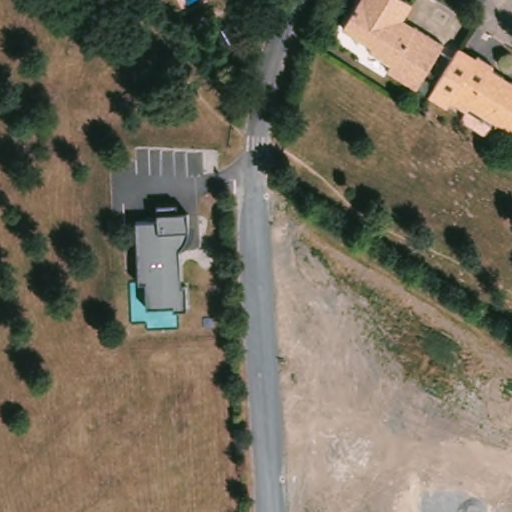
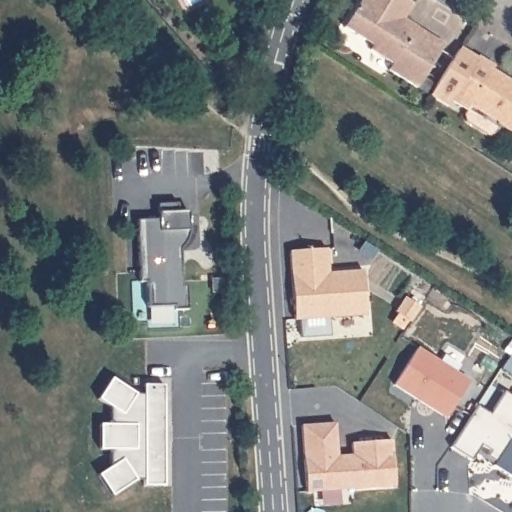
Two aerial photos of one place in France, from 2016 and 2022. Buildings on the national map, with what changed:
unchanged [(410,3),(402,18),(441,44),(413,89),(383,70),(387,64),(367,51),(371,46),(341,26),(358,0),(405,0),(410,3)]
unchanged [(487,71),(512,87),(512,137),(495,126),(490,135),(483,136),(461,122),(460,115),(462,112),(446,101),(474,57),(489,67),(487,71)]
unchanged [(146,283),(139,283),(137,219),(156,219),(156,204),(176,203),(176,211),(187,210),(189,222),(189,232),(186,241),(180,249),(181,284),(186,284),(186,308),(175,309),(175,306),(146,306),(146,283)]
new [(325,244),(326,269),(361,267),(364,312),(298,316),(292,316),(288,246),(325,244)]
new [(416,346),(468,380),(444,416),(392,382),(416,346)]
new [(112,445),(108,445),(102,445),(102,420),(107,420),(112,420),(112,402),(105,398),(100,395),(113,374),(118,377),(137,390),(145,390),(145,380),(165,380),(167,481),(147,481),(146,475),(139,475),(119,488),(114,491),(101,471),(105,468),(113,463),(112,445)]
new [(492,407),(506,384),(512,387),(512,470),(495,459),(497,455),(488,449),(491,444),(483,438),(473,454),(452,440),(479,398),(492,407)]
new [(335,420),(337,456),(352,455),(351,440),(391,438),(393,484),(305,488),(301,422),(335,420)]

